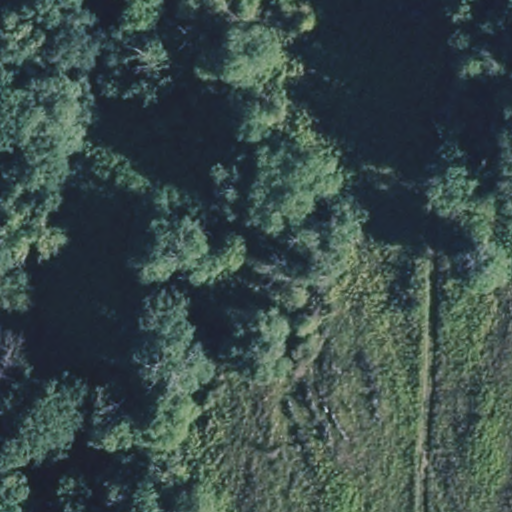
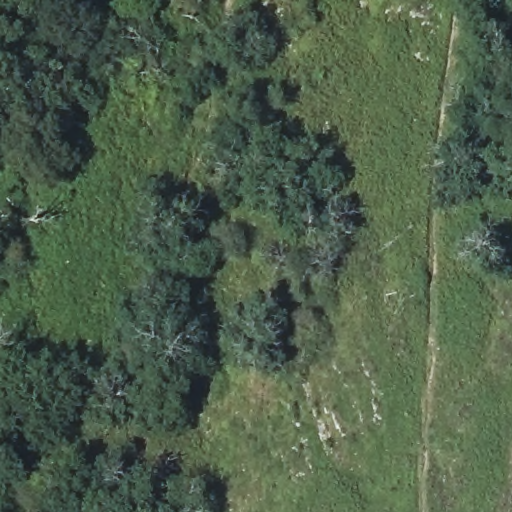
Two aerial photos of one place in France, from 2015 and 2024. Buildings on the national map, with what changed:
[]

